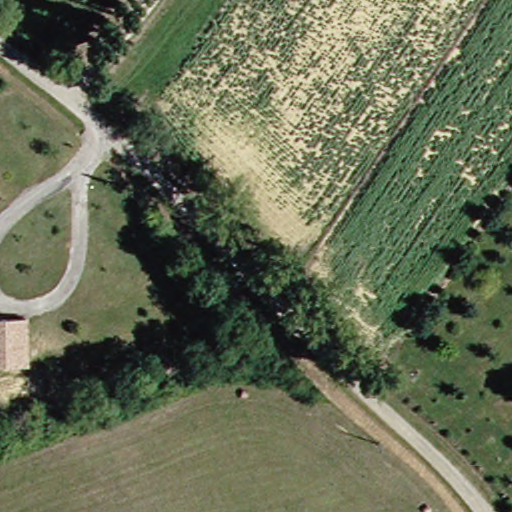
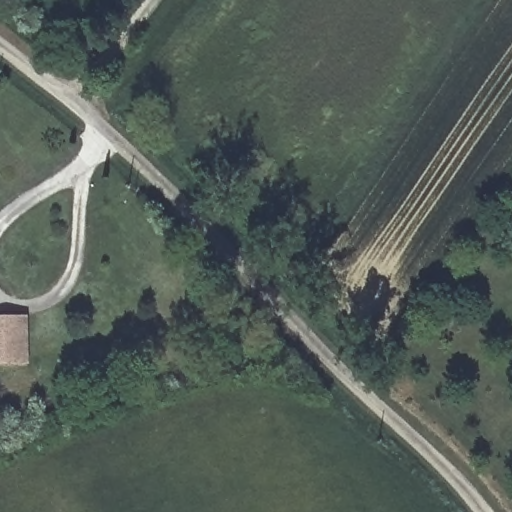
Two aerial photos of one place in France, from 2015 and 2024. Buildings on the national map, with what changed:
unchanged [(0,362),(0,318),(23,318),(23,363),(0,362)]

